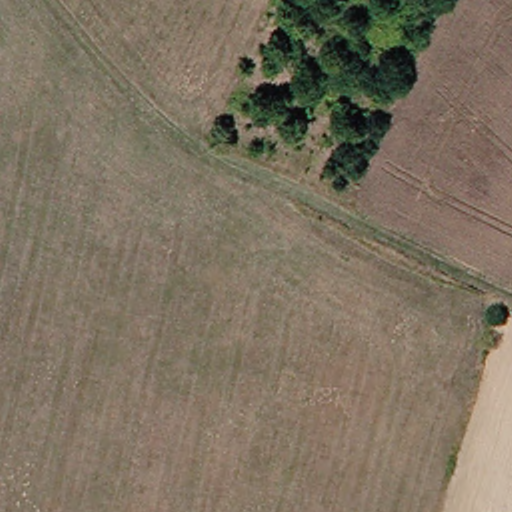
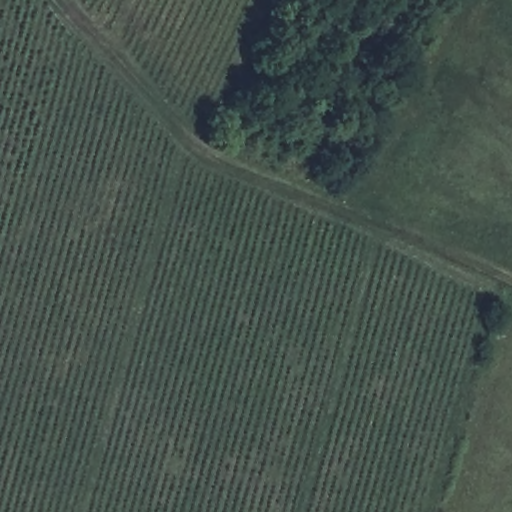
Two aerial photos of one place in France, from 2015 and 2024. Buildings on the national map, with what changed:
[]

